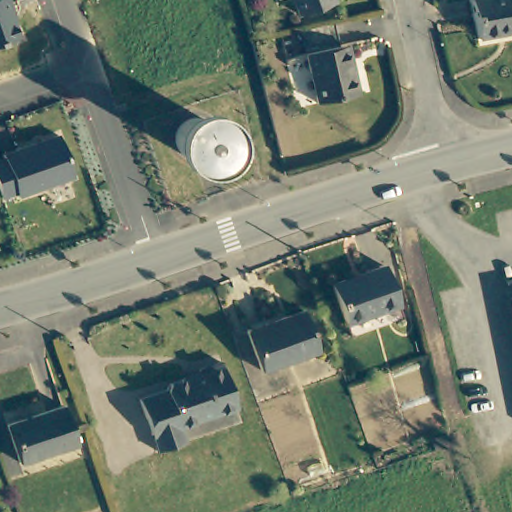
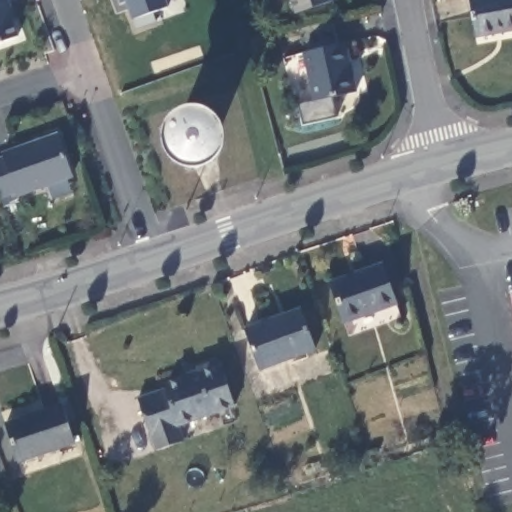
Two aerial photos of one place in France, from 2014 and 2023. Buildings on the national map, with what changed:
unchanged [(9,5),(7,6),(16,31),(0,37),(0,0),(8,0),(9,5)]
new [(126,2),(121,4),(119,0),(167,0),(170,8),(133,20),(126,2)]
unchanged [(275,2),(275,0),(282,0),(275,2)]
unchanged [(332,5),(296,17),(290,0),(331,0),(332,5)]
unchanged [(465,1),(471,0),(512,0),(512,33),(472,40),(465,1)]
unchanged [(342,59),(348,85),(351,84),(356,106),(314,115),(299,42),(318,38),(333,35),(338,59),(342,59)]
unchanged [(71,170),(15,190),(14,186),(0,191),(0,153),(2,152),(1,148),(56,129),(71,170)]
unchanged [(329,289),(382,272),(394,309),(341,326),(329,289)]
unchanged [(512,301),(512,320),(507,302),(512,301)]
unchanged [(259,375),(244,334),(300,313),(316,355),(259,375)]
unchanged [(153,456),(135,405),(163,395),(166,391),(170,387),(176,386),(181,387),(183,388),(199,382),(196,374),(219,366),(235,411),(177,432),(182,446),(153,456)]
unchanged [(17,466),(4,426),(61,407),(74,447),(17,466)]

